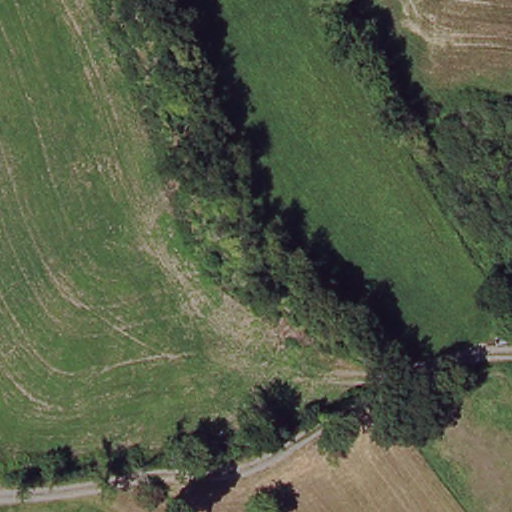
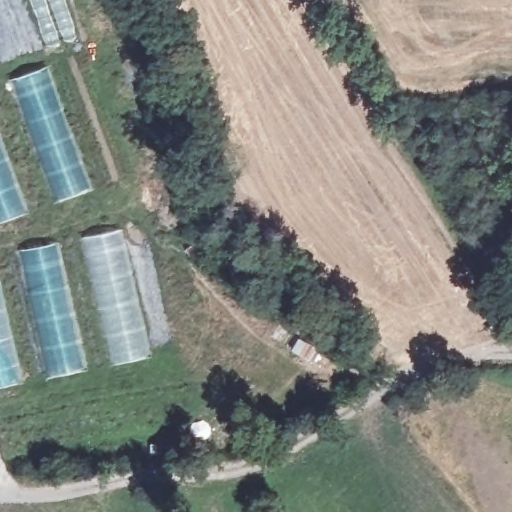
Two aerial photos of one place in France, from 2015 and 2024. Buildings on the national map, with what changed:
new [(52,193),(14,92),(45,80),(82,184),(52,193)]
new [(0,225),(0,142),(27,215),(0,225)]
new [(118,232),(148,358),(0,388),(0,255),(118,232)]

